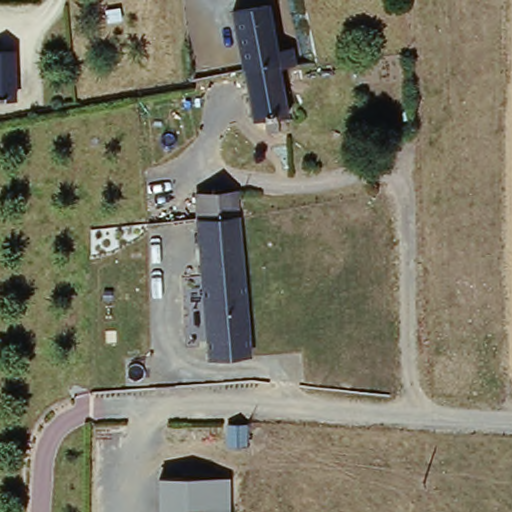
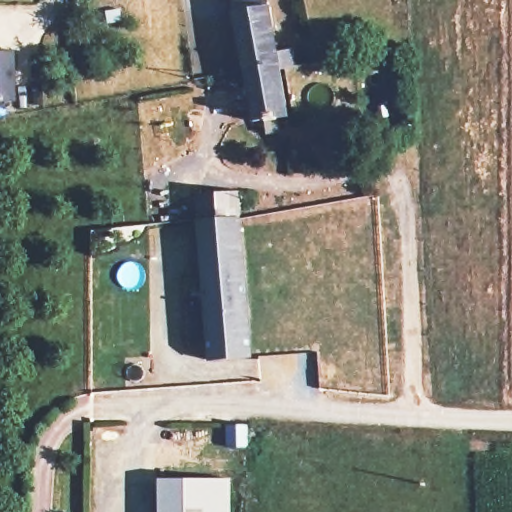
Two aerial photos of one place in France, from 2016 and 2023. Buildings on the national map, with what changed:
unchanged [(235,9),(247,6),(246,0),(272,0),(282,50),(298,45),(301,65),(285,67),(247,75),(235,9)]
unchanged [(22,51),(14,102),(0,100),(0,47),(22,51)]
unchanged [(281,119),(285,135),(271,139),(267,122),(258,124),(247,75),(285,67),(295,115),(281,119)]
unchanged [(199,216),(198,194),(246,193),(247,218),(199,216)]
unchanged [(249,302),(200,305),(199,216),(247,218),(249,302)]
unchanged [(249,328),(200,329),(200,305),(249,302),(249,328)]
unchanged [(249,328),(249,350),(201,350),(200,329),(249,328)]
unchanged [(245,445),(231,445),(230,421),(244,420),(245,445)]
unchanged [(169,482),(237,485),(236,512),(168,512),(169,482)]

